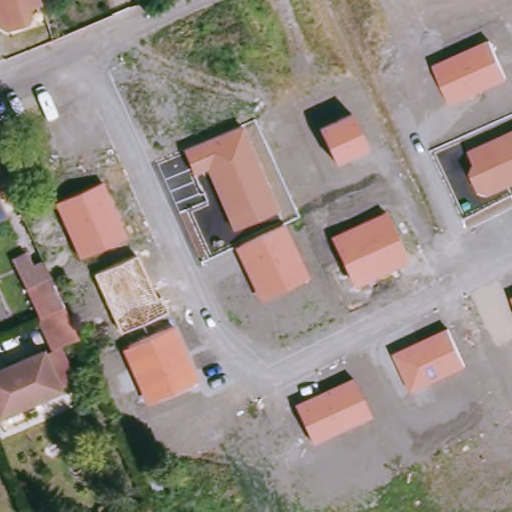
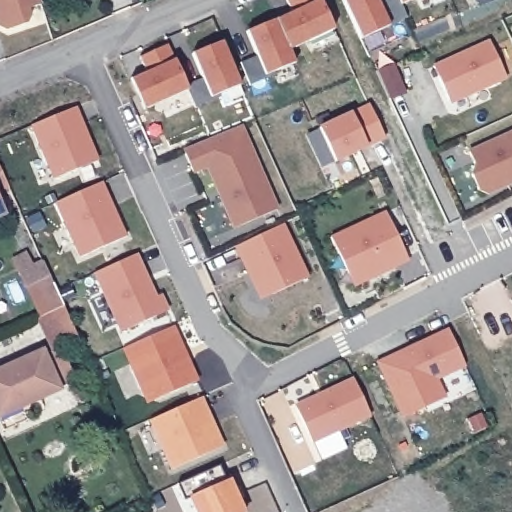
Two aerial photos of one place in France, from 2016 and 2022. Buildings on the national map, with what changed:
unchanged [(27,9),(30,15),(25,24),(9,29),(0,24),(0,0),(41,0),(42,4),(27,9)]
new [(287,49),(292,64),(267,74),(247,31),(295,11),(288,0),(319,0),(332,29),(287,49)]
new [(362,39),(343,0),(374,0),(386,27),(362,39)]
new [(399,0),(407,0),(401,3),(399,0)]
unchanged [(451,104),(432,65),(490,40),(506,80),(451,104)]
new [(239,86),(212,97),(193,55),(220,42),(239,86)]
new [(172,60),(186,90),(143,108),(131,80),(149,72),(141,57),(165,46),(172,60)]
new [(52,179),(31,127),(77,108),(97,160),(52,179)]
unchanged [(319,129),(351,114),(366,147),(336,163),(319,129)]
unchanged [(232,230),(206,170),(194,174),(184,149),(241,125),(277,208),(232,230)]
unchanged [(487,195),(479,191),(470,171),(474,164),(469,150),(512,131),(512,185),(487,195)]
unchanged [(56,203),(104,181),(127,235),(78,258),(56,203)]
unchanged [(354,286),(331,236),(386,210),(409,260),(354,286)]
unchanged [(284,225),(308,276),(260,298),(235,248),(284,225)]
new [(77,338),(52,350),(11,258),(26,252),(32,265),(41,262),(77,338)]
unchanged [(95,274),(137,255),(156,297),(162,295),(167,311),(121,331),(95,274)]
demolished [(50,312),(65,305),(80,336),(57,346),(44,315),(50,312)]
unchanged [(393,354),(448,327),(466,366),(412,392),(393,354)]
unchanged [(122,348),(175,328),(199,378),(146,405),(122,348)]
unchanged [(46,397),(2,416),(0,413),(0,371),(42,352),(61,390),(46,397)]
unchanged [(295,404),(353,377),(371,417),(312,443),(295,404)]
new [(225,446),(174,470),(152,420),(202,397),(225,446)]
new [(221,468),(227,484),(230,483),(243,512),(198,512),(192,500),(186,503),(178,487),(221,468)]

